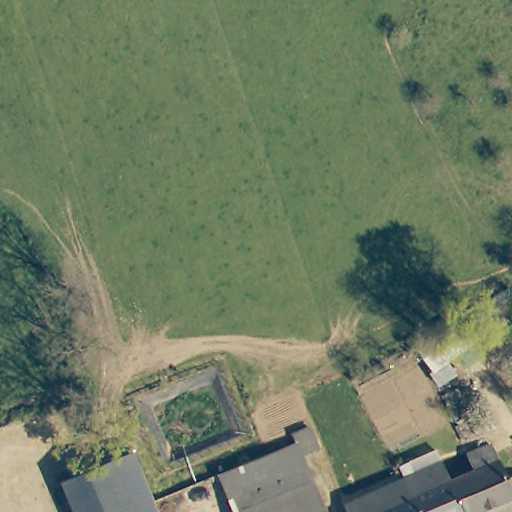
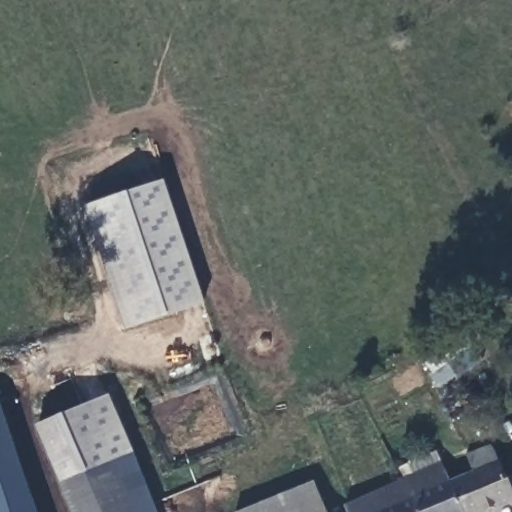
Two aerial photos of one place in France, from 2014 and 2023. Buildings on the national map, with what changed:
new [(125,332),(83,207),(164,180),(205,303),(125,332)]
new [(105,463),(49,486),(25,430),(104,395),(127,455),(105,463)]
new [(36,512),(0,512),(0,401),(36,512)]
unchanged [(298,445),(294,435),(310,429),(318,450),(302,456),(325,512),(234,512),(220,475),(298,445)]
unchanged [(378,487),(401,478),(406,475),(407,478),(445,461),(454,482),(476,472),(468,454),(490,443),(507,480),(512,478),(512,499),(481,512),(345,512),(342,503),(378,487)]
unchanged [(126,512),(105,463),(127,455),(151,512),(126,512)]
unchanged [(105,463),(126,512),(61,512),(49,486),(105,463)]

